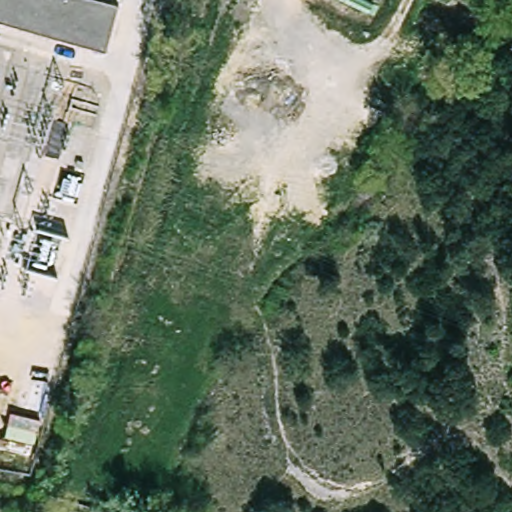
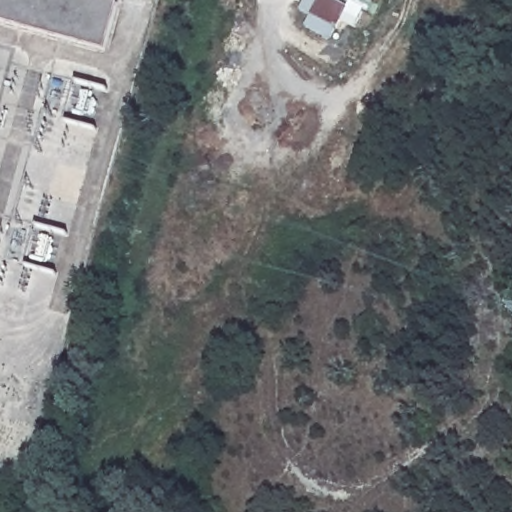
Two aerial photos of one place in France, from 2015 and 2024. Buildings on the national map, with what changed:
unchanged [(0,18),(0,0),(100,0),(118,5),(105,49),(0,18)]
new [(369,11),(364,9),(354,27),(341,21),(331,38),(306,26),(311,15),(300,10),(305,0),(370,0),(373,1),(369,11)]

